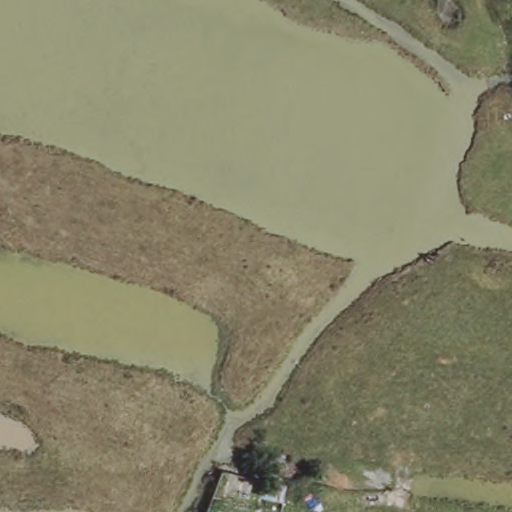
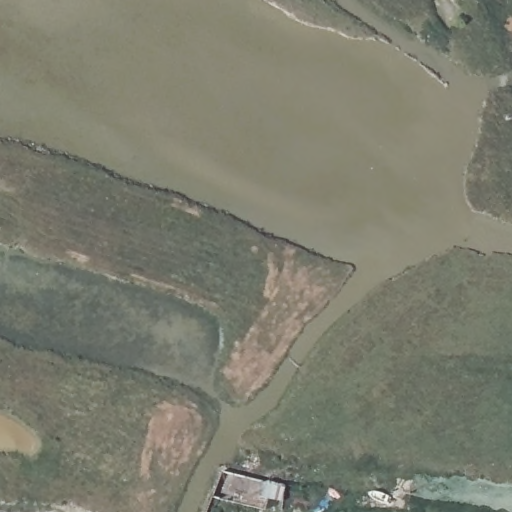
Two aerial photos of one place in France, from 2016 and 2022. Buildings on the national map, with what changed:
[]

